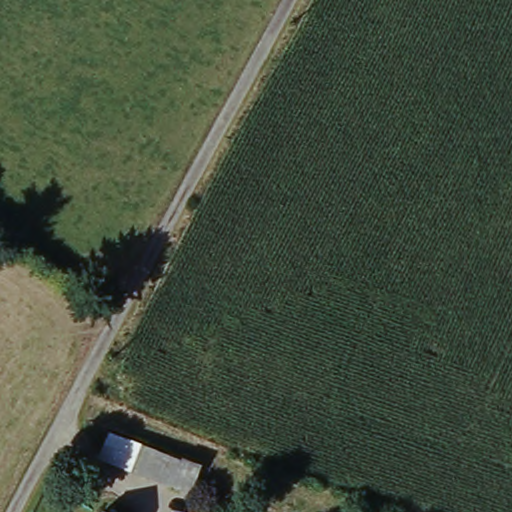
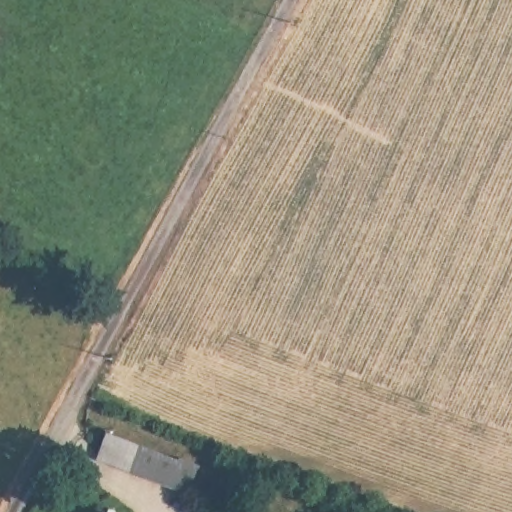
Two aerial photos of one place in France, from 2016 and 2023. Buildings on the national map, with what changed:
unchanged [(100,458),(110,434),(145,446),(184,462),(186,459),(203,467),(192,493),(135,472),(100,458)]
unchanged [(102,512),(102,511),(106,512),(102,512)]

